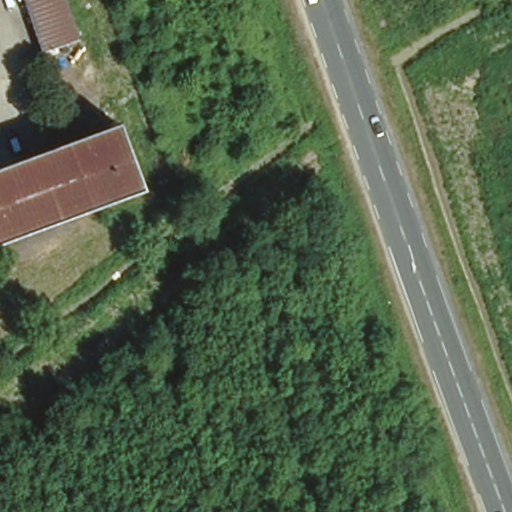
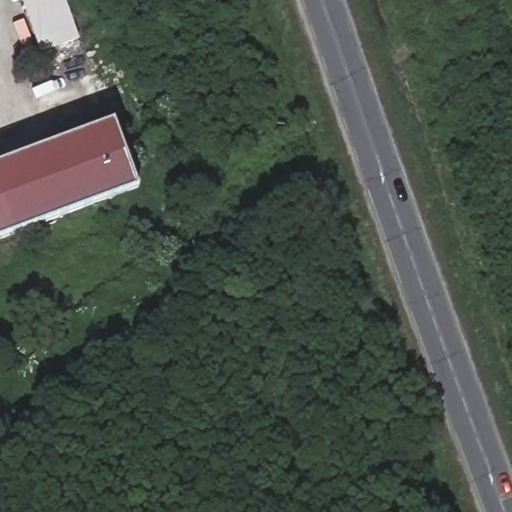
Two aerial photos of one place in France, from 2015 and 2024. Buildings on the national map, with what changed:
unchanged [(44,51),(24,0),(63,0),(78,37),(44,51)]
unchanged [(146,180),(0,237),(0,158),(121,113),(146,180)]

